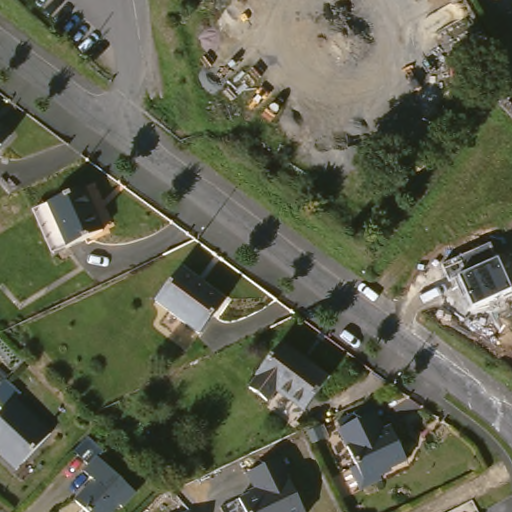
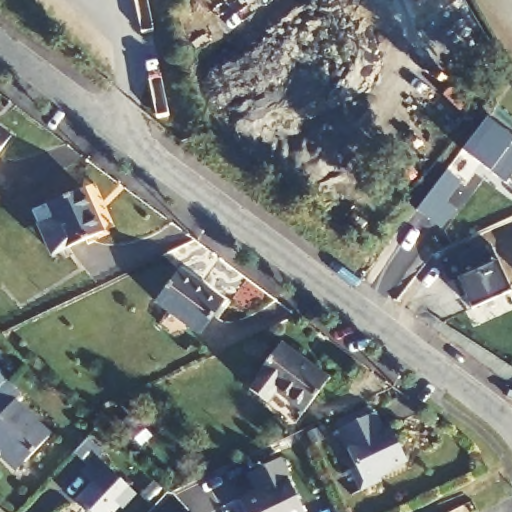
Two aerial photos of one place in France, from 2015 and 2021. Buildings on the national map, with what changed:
new [(461,150),(485,118),(512,138),(512,175),(504,185),(461,150)]
unchanged [(11,145),(0,160),(0,137),(11,145)]
new [(415,211),(446,170),(461,181),(446,202),(456,210),(442,230),(415,211)]
unchanged [(82,190),(103,234),(68,249),(48,205),(82,190)]
unchanged [(496,260),(509,292),(471,308),(466,296),(461,299),(453,279),(447,281),(442,265),(489,245),(496,260)]
unchanged [(222,304),(197,337),(156,307),(182,275),(222,304)]
unchanged [(281,343),(329,379),(306,410),(278,390),(271,400),(254,386),(262,374),(260,372),(281,343)]
unchanged [(0,462),(0,421),(6,412),(0,410),(0,389),(1,388),(20,399),(15,403),(55,432),(13,473),(0,462)]
unchanged [(346,461),(353,456),(340,431),(372,417),(383,437),(393,433),(406,460),(389,469),(389,475),(377,480),(379,486),(361,492),(346,461)]
unchanged [(246,475),(285,457),(290,472),(285,479),(300,512),(240,512),(232,498),(251,492),(246,475)]
unchanged [(82,473),(93,458),(126,480),(112,499),(116,503),(109,512),(82,512),(72,504),(91,481),(82,473)]

